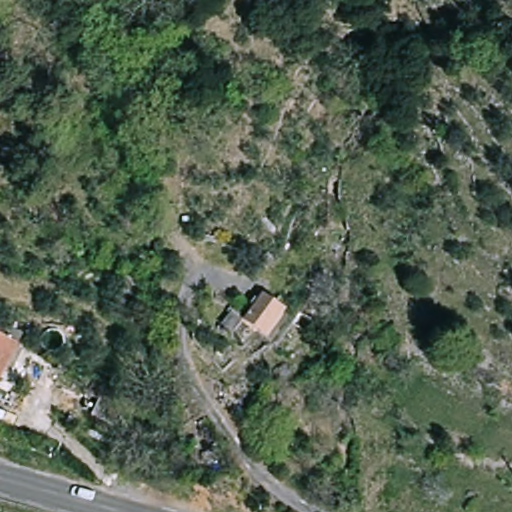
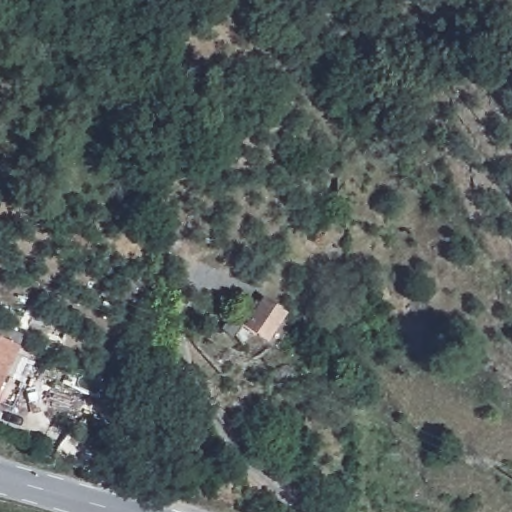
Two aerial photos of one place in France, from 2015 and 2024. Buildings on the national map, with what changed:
unchanged [(133,320),(116,317),(120,293),(137,296),(133,320)]
unchanged [(250,325),(262,300),(287,313),(273,341),(250,328),(250,325)]
unchanged [(230,310),(240,315),(240,318),(230,335),(220,328),(230,310)]
unchanged [(22,342),(0,390),(0,332),(22,342)]
unchanged [(116,417),(107,433),(85,423),(93,406),(116,417)]

